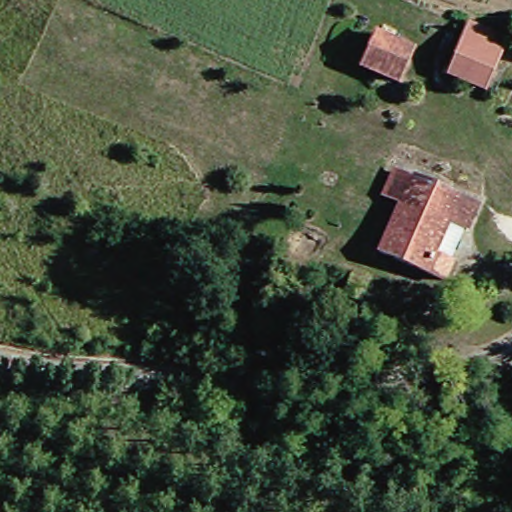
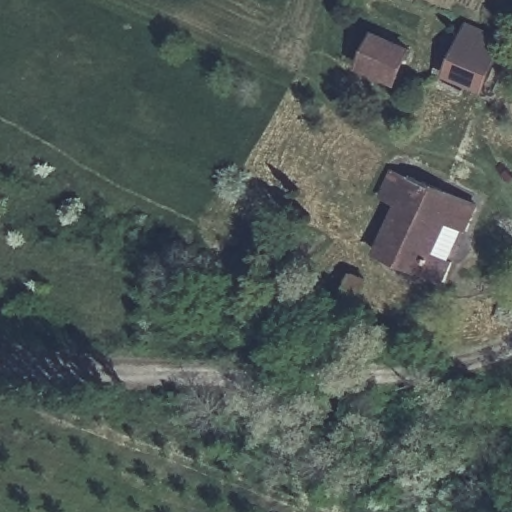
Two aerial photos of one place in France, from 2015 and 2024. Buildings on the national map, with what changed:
unchanged [(509,41),(491,87),(453,73),(471,26),(509,41)]
unchanged [(412,47),(398,81),(366,66),(379,33),(412,47)]
unchanged [(401,217),(381,209),(398,167),(420,176),(401,217)]
unchanged [(474,229),(454,222),(442,250),(462,260),(453,280),(387,253),(401,217),(420,176),(484,205),(474,229)]
unchanged [(358,294),(347,289),(354,266),(365,270),(358,294)]

